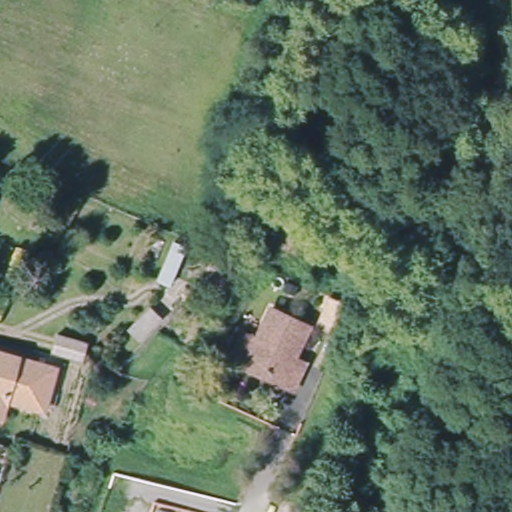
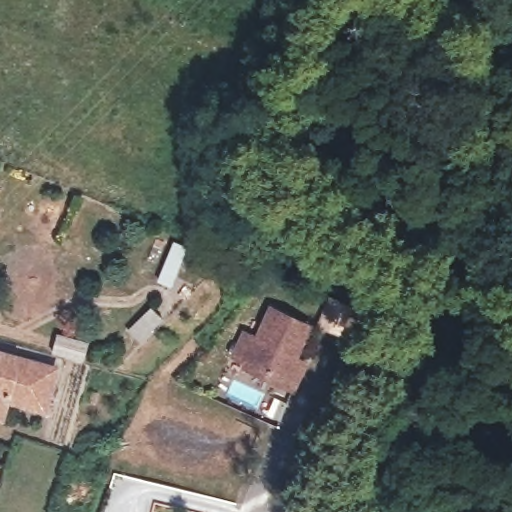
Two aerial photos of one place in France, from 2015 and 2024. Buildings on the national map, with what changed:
unchanged [(175,289),(163,284),(179,245),(190,251),(175,289)]
unchanged [(353,307),(342,335),(322,326),(333,298),(353,307)]
unchanged [(151,345),(139,332),(162,307),(175,320),(151,345)]
unchanged [(296,391),(283,386),(286,379),(236,359),(241,347),(244,337),(260,343),(274,311),(309,326),(294,360),(307,364),(296,391)]
unchanged [(65,355),(69,338),(103,347),(98,365),(65,355)]
unchanged [(58,370),(46,412),(9,402),(8,405),(0,403),(0,354),(58,370)]

